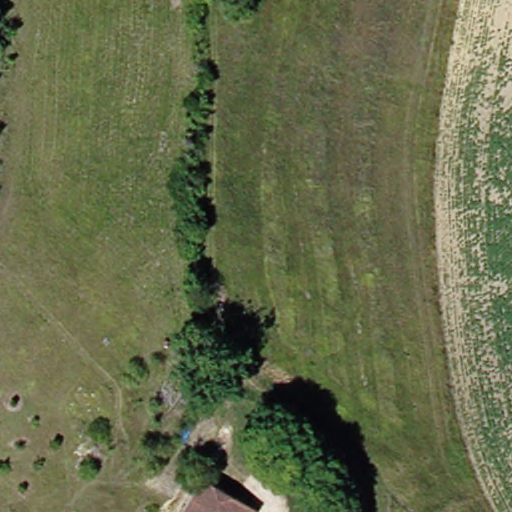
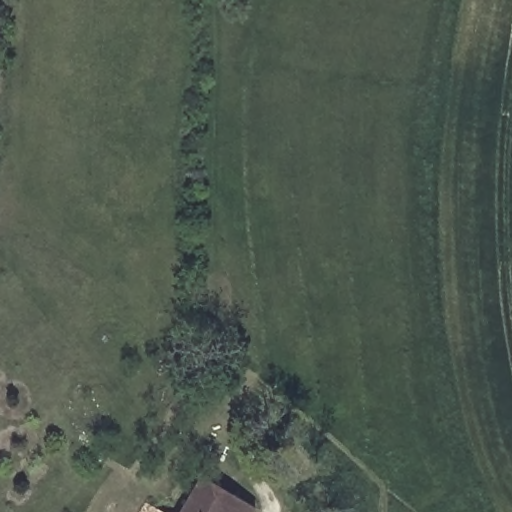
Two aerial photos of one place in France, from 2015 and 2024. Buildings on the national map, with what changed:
unchanged [(242,512),(183,512),(204,482),(242,512)]

